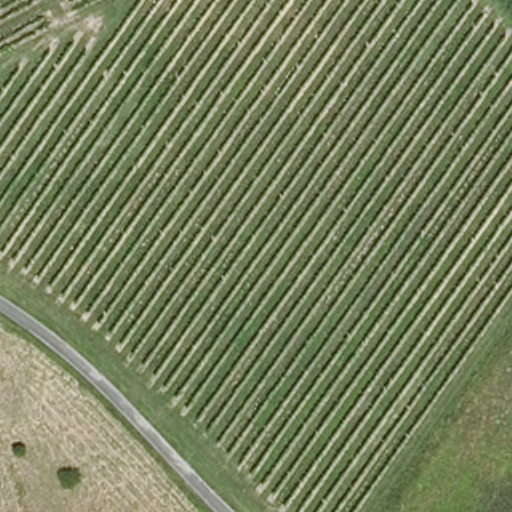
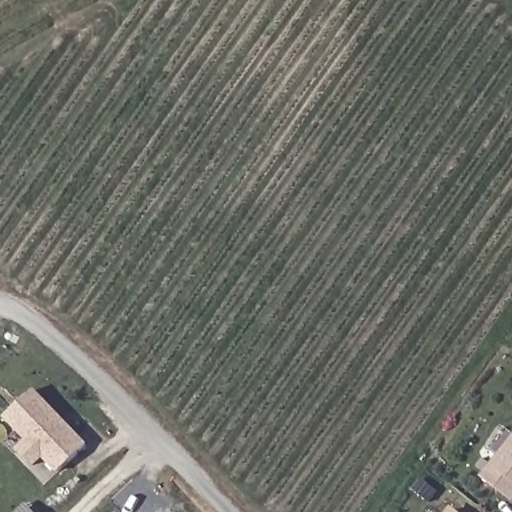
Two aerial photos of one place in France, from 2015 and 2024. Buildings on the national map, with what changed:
new [(55,417),(62,425),(82,446),(55,472),(40,456),(29,466),(11,448),(22,437),(2,417),(30,391),(55,417)]
new [(481,478),(512,439),(512,501),(481,478)]

